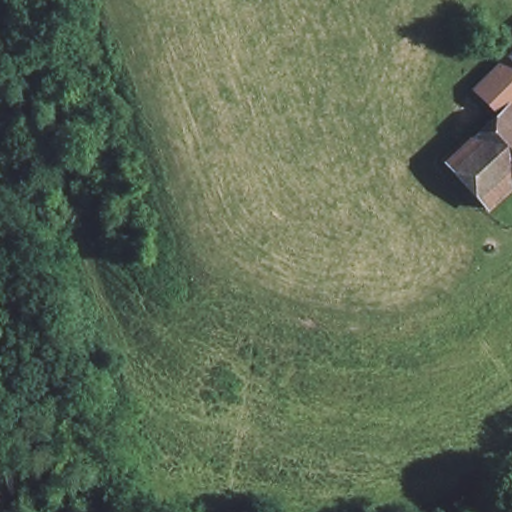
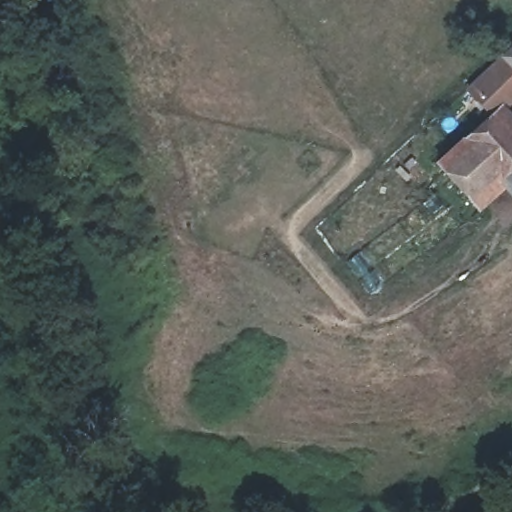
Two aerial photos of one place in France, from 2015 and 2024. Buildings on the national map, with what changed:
unchanged [(512,93),(492,112),(467,85),(512,44),(512,93)]
unchanged [(512,187),(508,185),(481,211),(439,164),(492,112),(512,133),(512,187)]

